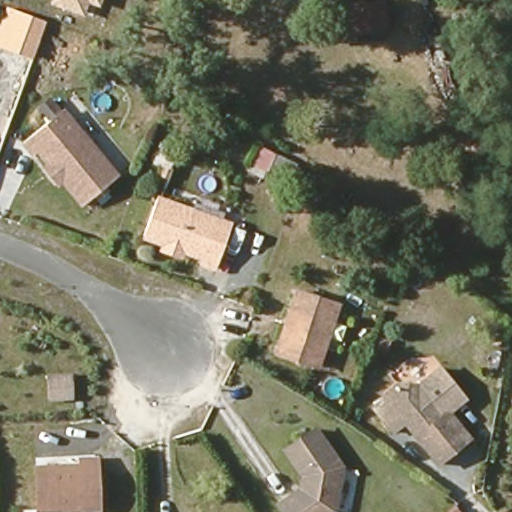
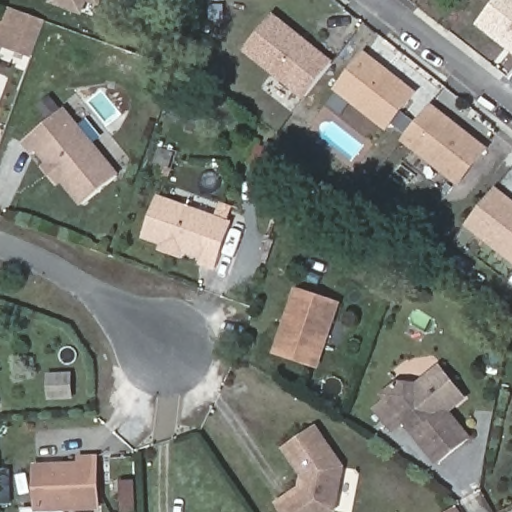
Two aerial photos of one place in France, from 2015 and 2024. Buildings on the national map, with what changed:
unchanged [(52,0),(102,0),(100,7),(88,3),(83,16),(50,5),(52,0)]
new [(476,26),(496,0),(512,0),(512,55),(476,26)]
unchanged [(0,47),(0,22),(6,6),(46,21),(32,59),(0,47)]
new [(305,99),(245,51),(271,17),(332,65),(305,99)]
new [(364,49),(417,89),(385,130),(333,91),(364,49)]
new [(430,103),(487,146),(456,187),(398,144),(430,103)]
unchanged [(50,174),(64,162),(53,149),(39,161),(28,148),(66,116),(123,181),(98,202),(77,177),(63,190),(50,174)]
new [(465,226),(495,187),(512,201),(512,263),(465,226)]
unchanged [(221,275),(205,270),(208,262),(148,242),(160,206),(236,230),(221,275)]
unchanged [(341,313),(321,375),(280,361),(300,298),(341,313)]
unchanged [(445,416),(451,412),(474,438),(444,467),(409,427),(399,436),(379,413),(390,403),(387,397),(402,387),(420,387),(445,416)]
unchanged [(320,433),(346,470),(338,512),(282,512),(296,502),(299,506),(309,498),(313,478),(308,469),(302,472),(291,453),(320,433)]
unchanged [(102,468),(102,512),(42,512),(43,475),(83,475),(84,467),(102,468)]
new [(454,508),(456,512),(449,512),(454,508)]

